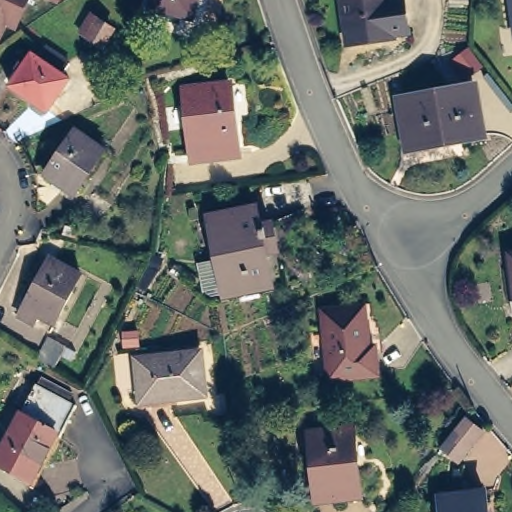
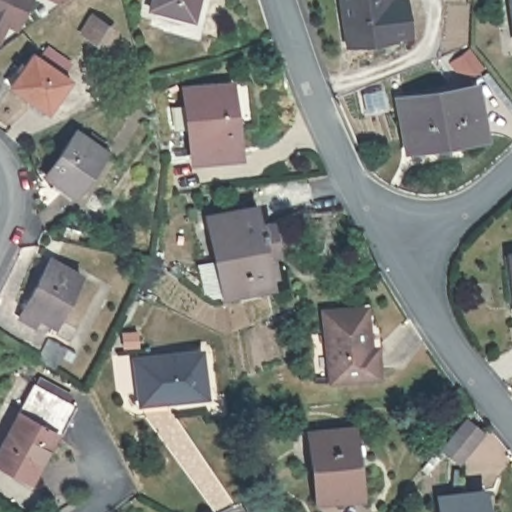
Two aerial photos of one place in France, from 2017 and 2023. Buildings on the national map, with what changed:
unchanged [(15,25),(9,23),(0,41),(0,0),(27,0),(15,25)]
unchanged [(192,18),(152,10),(154,0),(196,0),(192,18)]
unchanged [(405,29),(344,37),(339,0),(400,0),(405,29)]
unchanged [(512,11),(510,0),(512,0),(512,11)]
unchanged [(84,33),(95,17),(109,25),(98,41),(84,33)]
unchanged [(52,107),(15,82),(37,51),(75,75),(52,107)]
unchanged [(492,138),(418,149),(410,102),(483,88),(492,138)]
unchanged [(247,160),(202,165),(197,96),(239,91),(242,120),(245,140),(247,160)]
unchanged [(55,183),(59,177),(49,171),(79,127),(110,147),(80,191),(68,183),(64,189),(55,183)]
unchanged [(218,291),(202,214),(249,204),(252,221),(265,219),(269,237),(270,248),(259,249),(265,282),(218,291)]
unchanged [(65,313),(49,305),(42,315),(29,307),(59,251),(89,266),(65,313)]
unchanged [(160,261),(157,272),(144,292),(135,286),(145,265),(150,258),(160,261)]
unchanged [(335,380),(329,314),(367,311),(372,354),(379,353),(380,376),(335,380)]
unchanged [(36,359),(47,339),(65,348),(54,369),(36,359)]
unchanged [(139,398),(135,360),(199,352),(204,398),(164,402),(139,405),(139,398)]
unchanged [(22,485),(24,480),(0,468),(0,449),(33,386),(35,388),(39,380),(70,397),(67,404),(75,408),(59,440),(32,490),(22,485)]
unchanged [(460,449),(449,439),(467,418),(477,428),(460,449)]
unchanged [(365,499),(319,503),(312,433),(359,428),(365,499)]
unchanged [(445,512),(442,492),(490,487),(492,512),(445,512)]

